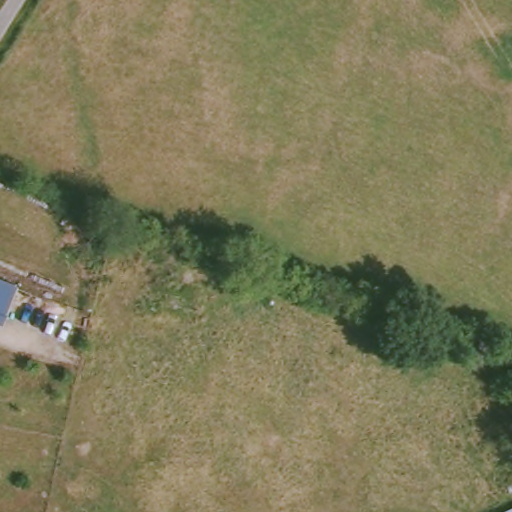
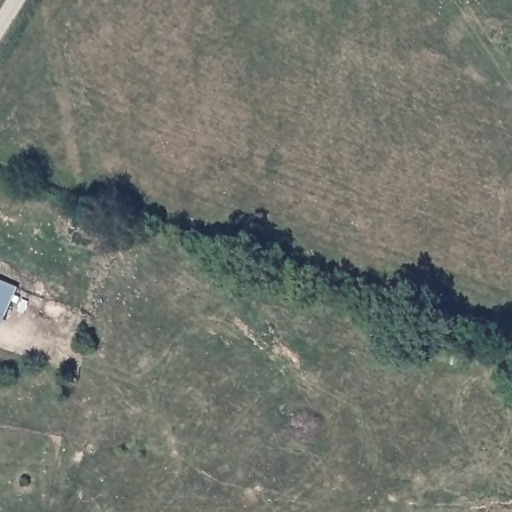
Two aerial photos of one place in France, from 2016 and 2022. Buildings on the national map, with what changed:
unchanged [(0,316),(0,284),(15,290),(5,318),(0,316)]
unchanged [(512,503),(512,512),(492,512),(512,503)]

